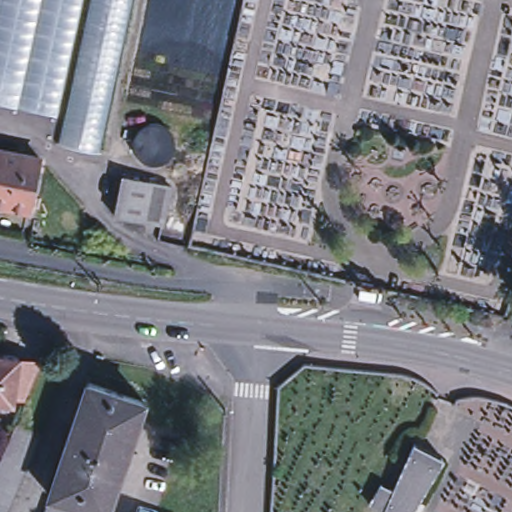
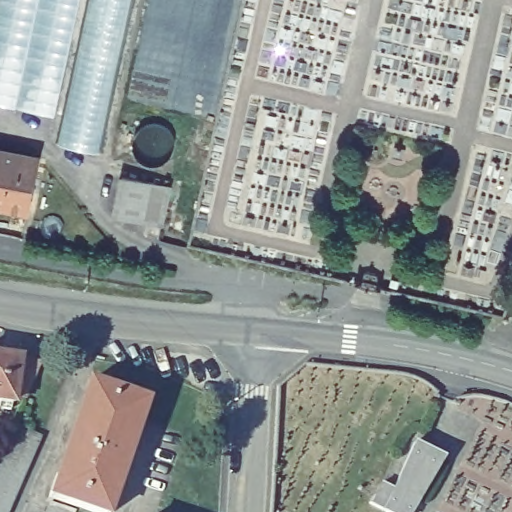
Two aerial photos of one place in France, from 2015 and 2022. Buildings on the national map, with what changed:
unchanged [(0,103),(0,0),(80,0),(55,116),(0,103)]
unchanged [(53,145),(84,0),(130,0),(97,154),(53,145)]
unchanged [(42,160),(31,213),(0,207),(0,150),(42,160)]
unchanged [(170,185),(163,224),(117,216),(123,176),(170,185)]
unchanged [(190,213),(185,233),(168,230),(172,209),(190,213)]
unchanged [(20,360),(14,405),(0,403),(0,357),(20,360)]
unchanged [(87,382),(117,391),(145,400),(119,477),(113,494),(107,512),(102,512),(49,495),(53,484),(58,469),(87,382)]
unchanged [(8,512),(0,512),(0,462),(12,434),(13,430),(39,441),(26,471),(20,484),(8,512)]
unchanged [(415,440),(445,455),(412,512),(395,512),(385,507),(380,505),(370,500),(382,480),(386,482),(395,486),(415,440)]
unchanged [(75,508),(74,512),(45,512),(50,499),(75,508)]

